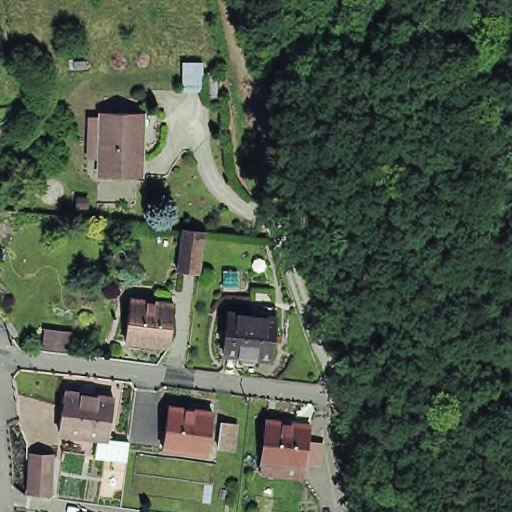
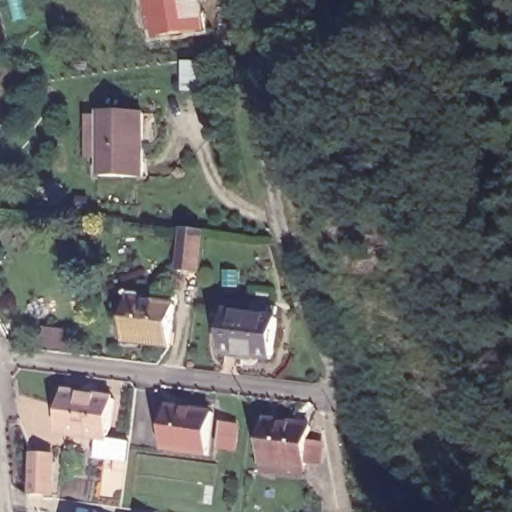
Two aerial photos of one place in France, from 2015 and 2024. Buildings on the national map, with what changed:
new [(150,39),(143,0),(202,0),(205,32),(150,39)]
unchanged [(200,64),(200,92),(184,92),(183,64),(200,64)]
unchanged [(95,161),(95,119),(106,119),(106,115),(150,116),(148,180),(105,179),(105,161),(95,161)]
unchanged [(178,268),(183,227),(205,229),(200,271),(178,268)]
unchanged [(130,302),(175,306),(170,349),(126,344),(130,302)]
unchanged [(278,360),(230,355),(233,314),(255,317),(256,309),(262,309),(267,310),(268,307),(281,309),(280,320),(282,320),(278,360)]
unchanged [(73,335),(71,353),(43,349),(45,332),(73,335)]
unchanged [(128,464),(96,458),(98,440),(60,435),(66,394),(115,401),(109,441),(130,444),(128,464)]
unchanged [(209,458),(165,452),(170,409),(213,414),(209,458)]
unchanged [(266,423),(310,428),(306,470),(286,468),(262,464),(266,423)]
unchanged [(220,424),(235,425),(235,450),(220,450),(220,424)]
unchanged [(51,496),(31,497),(30,463),(50,463),(51,496)]

